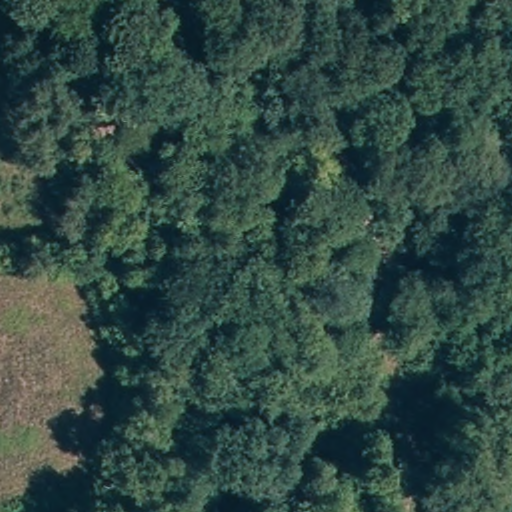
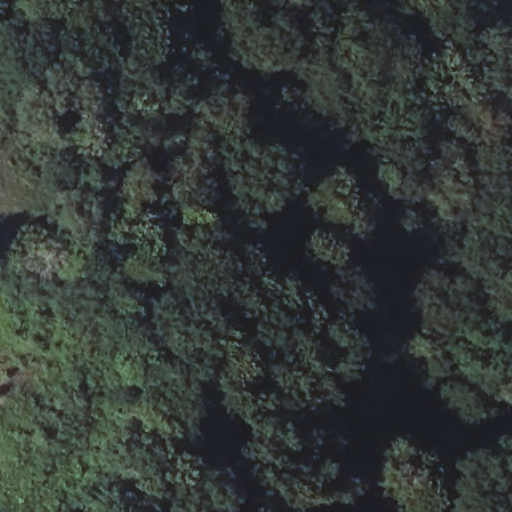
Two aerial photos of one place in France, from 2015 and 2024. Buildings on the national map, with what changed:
[]

